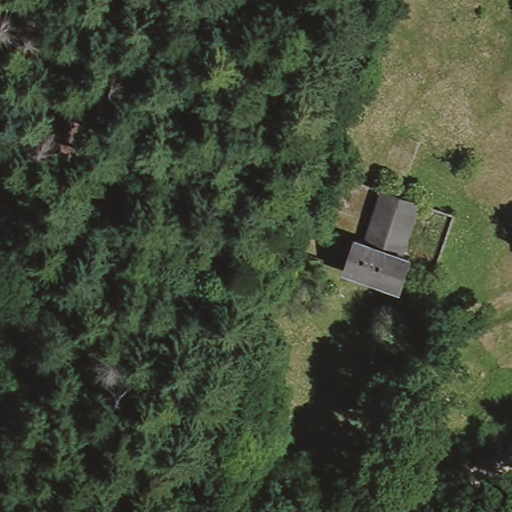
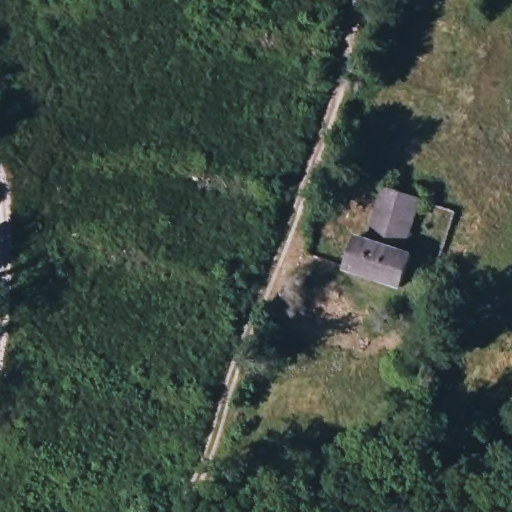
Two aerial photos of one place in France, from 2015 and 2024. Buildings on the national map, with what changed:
unchanged [(402,255),(412,257),(405,283),(400,286),(342,266),(351,240),(362,242),(381,186),(420,197),(402,255)]

